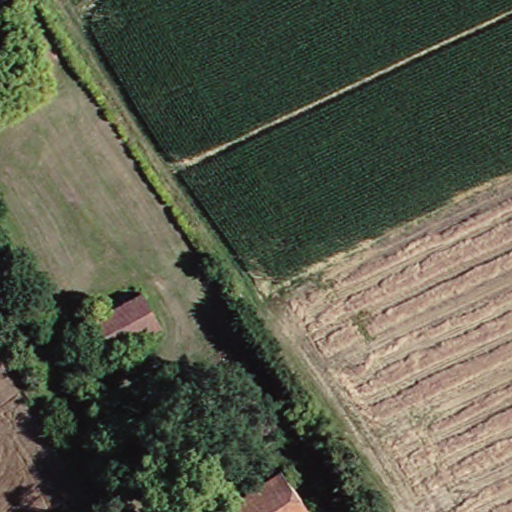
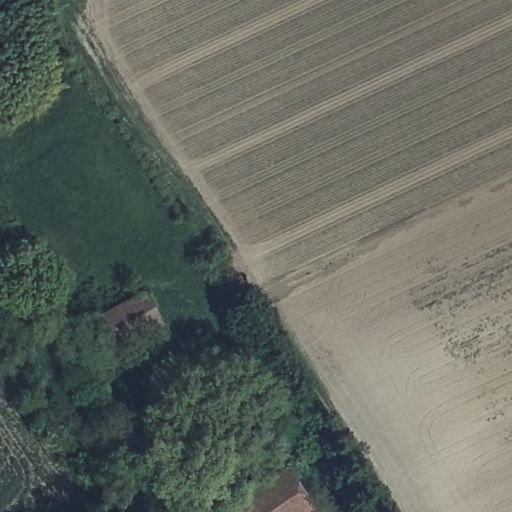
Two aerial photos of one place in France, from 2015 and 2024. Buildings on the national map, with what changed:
unchanged [(165,327),(109,357),(95,331),(150,300),(165,327)]
unchanged [(168,483),(165,478),(154,485),(143,469),(185,441),(200,462),(168,483)]
unchanged [(317,512),(234,512),(290,472),(317,512)]

